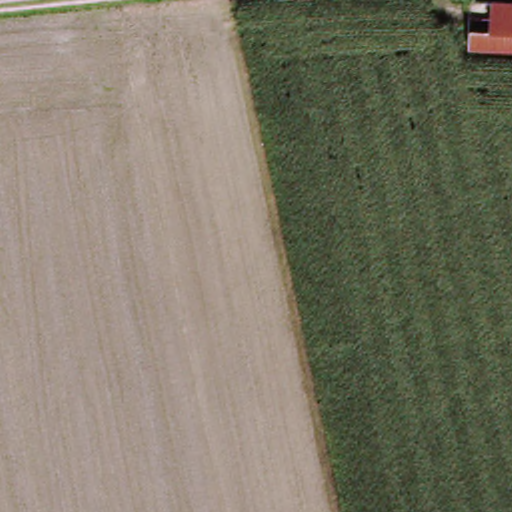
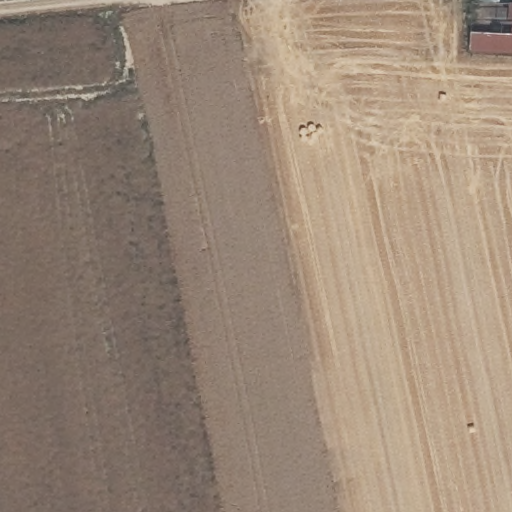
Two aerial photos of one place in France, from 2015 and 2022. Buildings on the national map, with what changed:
unchanged [(471,3),(512,7),(512,53),(466,49),(471,3)]

